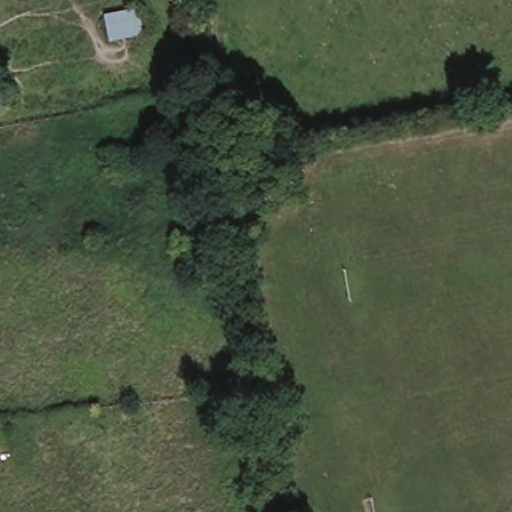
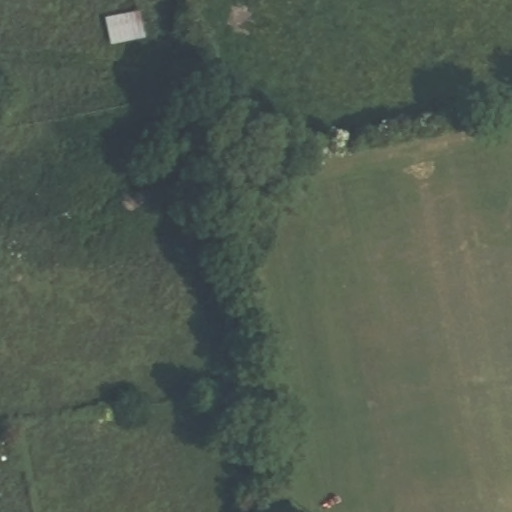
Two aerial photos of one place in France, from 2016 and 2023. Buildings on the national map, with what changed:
unchanged [(140,16),(145,38),(117,44),(112,23),(140,16)]

